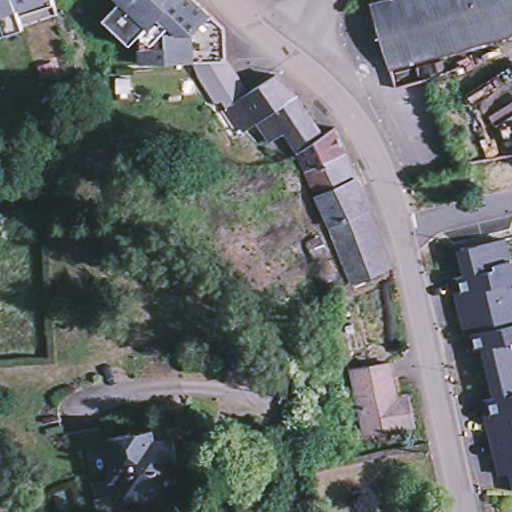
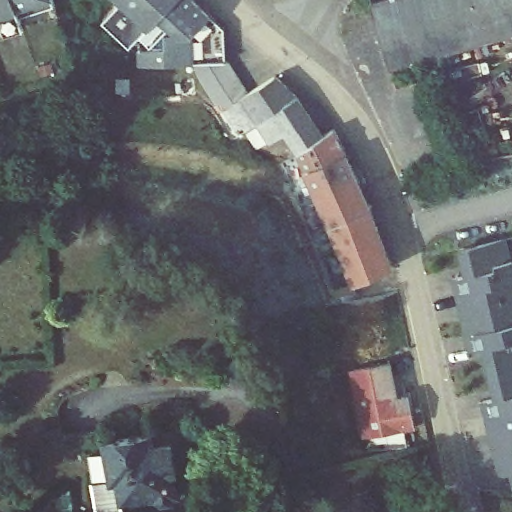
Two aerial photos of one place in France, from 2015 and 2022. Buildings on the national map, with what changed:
unchanged [(27,22),(0,31),(0,0),(20,0),(24,9),(27,22)]
unchanged [(20,0),(50,0),(24,9),(20,0)]
unchanged [(142,62),(140,33),(132,42),(105,17),(120,0),(198,0),(226,26),(226,27),(227,60),(202,61),(142,62)]
unchanged [(370,1),(373,0),(512,0),(512,30),(389,65),(370,1)]
unchanged [(227,60),(229,60),(250,92),(262,120),(259,122),(240,134),(225,109),(230,107),(226,101),(220,104),(202,75),(202,61),(227,60)]
unchanged [(299,94),(262,120),(250,92),(278,75),(300,94),(299,94)]
unchanged [(319,193),(307,169),(307,168),(305,163),(300,151),(289,131),(272,143),(259,122),(262,120),(299,94),(300,94),(302,97),(326,133),(337,128),(347,150),(349,152),(349,154),(350,154),(360,177),(319,193)]
unchanged [(375,204),(373,205),(333,224),(335,228),(327,230),(322,216),(328,214),(319,193),(360,177),(375,204)]
unchanged [(396,265),(395,265),(359,282),(335,228),(333,224),(373,205),(375,204),(396,265)]
unchanged [(325,236),(330,249),(317,255),(311,241),(325,236)]
unchanged [(497,477),(479,402),(488,400),(472,336),(459,338),(448,277),(462,273),(455,247),(507,236),(512,259),(512,477),(510,473),(497,477)]
unchanged [(412,419),(361,428),(350,365),(385,358),(390,393),(407,390),(412,419)]
unchanged [(51,488),(55,483),(72,482),(62,435),(103,426),(105,437),(112,478),(120,477),(124,496),(127,512),(78,512),(77,512),(56,512),(51,488)]
unchanged [(152,428),(154,440),(174,435),(179,467),(175,468),(179,488),(173,498),(165,498),(156,491),(124,496),(120,477),(112,478),(105,437),(152,428)]

